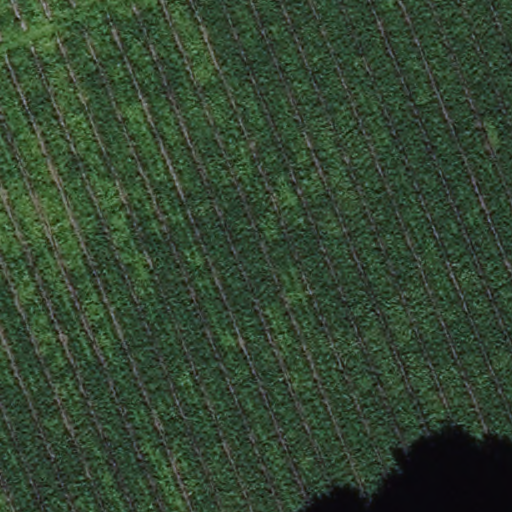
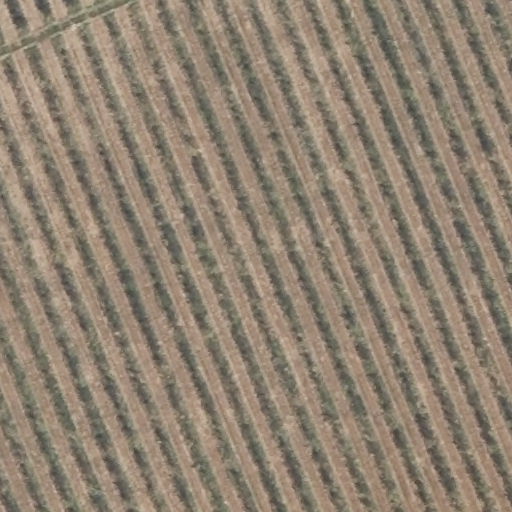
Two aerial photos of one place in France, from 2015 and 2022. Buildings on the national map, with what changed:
[]

